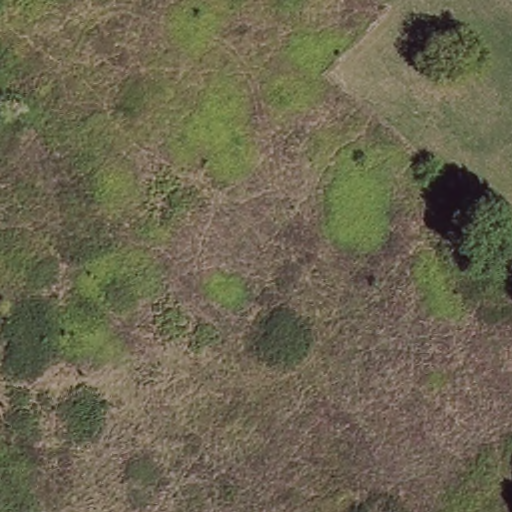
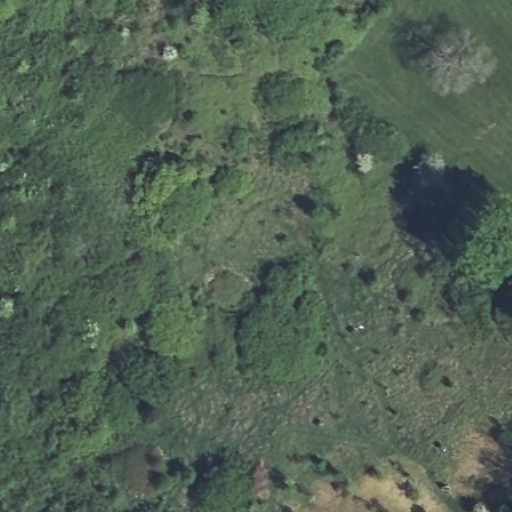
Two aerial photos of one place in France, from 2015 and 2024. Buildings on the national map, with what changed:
[]

